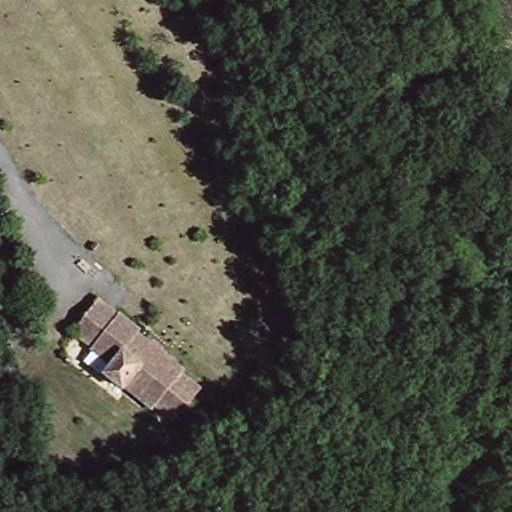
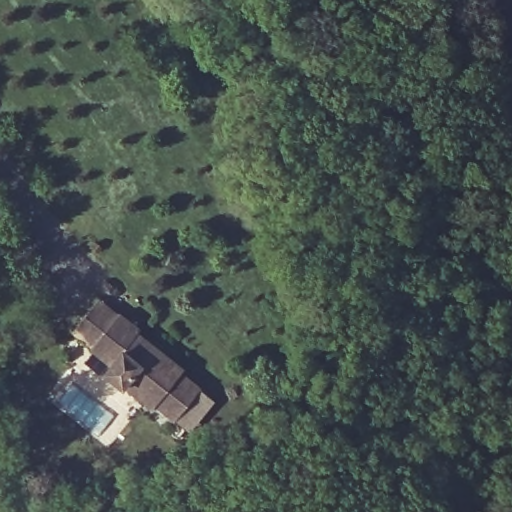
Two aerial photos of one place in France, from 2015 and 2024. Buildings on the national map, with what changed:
unchanged [(152,402),(149,406),(121,383),(119,384),(102,370),(109,363),(88,345),(90,343),(71,327),(96,297),(115,313),(116,310),(137,329),(135,332),(181,369),(177,372),(196,388),(170,418),(152,402)]

